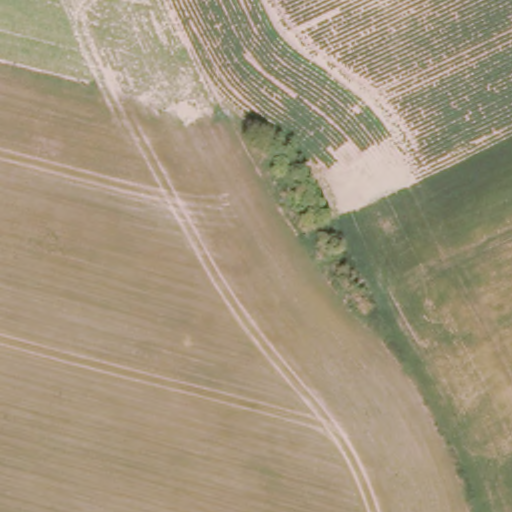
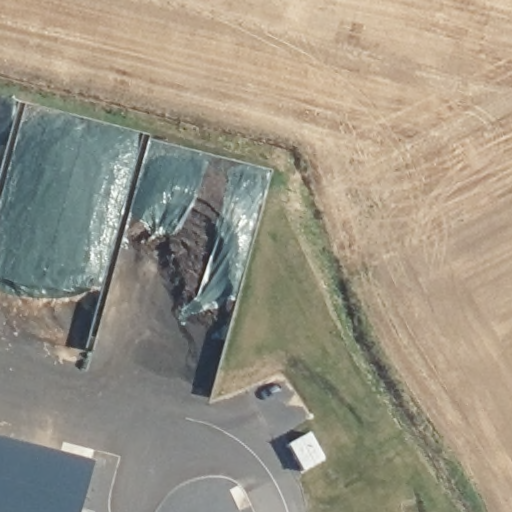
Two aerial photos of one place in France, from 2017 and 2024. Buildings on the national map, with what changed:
new [(77,512),(0,512),(0,442),(88,467),(77,512)]

